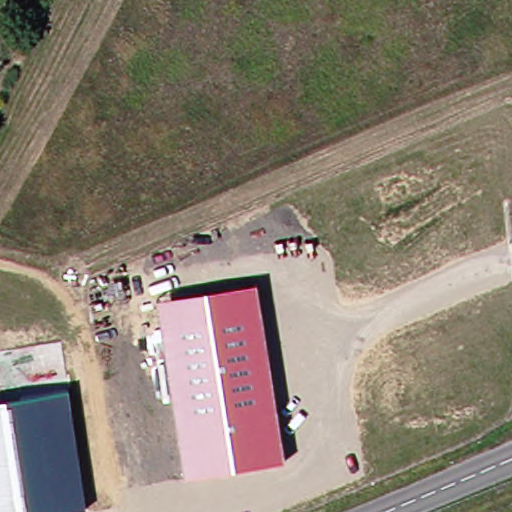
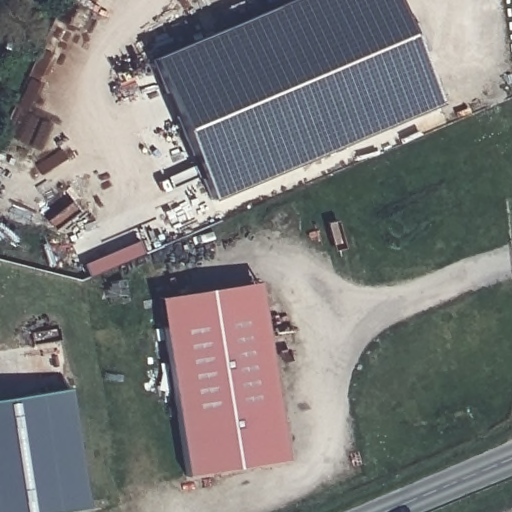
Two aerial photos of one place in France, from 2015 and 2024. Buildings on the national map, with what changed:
new [(152,58),(289,0),(396,0),(439,103),(211,199),(152,58)]
unchanged [(185,475),(157,297),(259,281),(285,459),(185,475)]
unchanged [(0,397),(69,387),(86,508),(58,512),(0,512),(0,397)]

